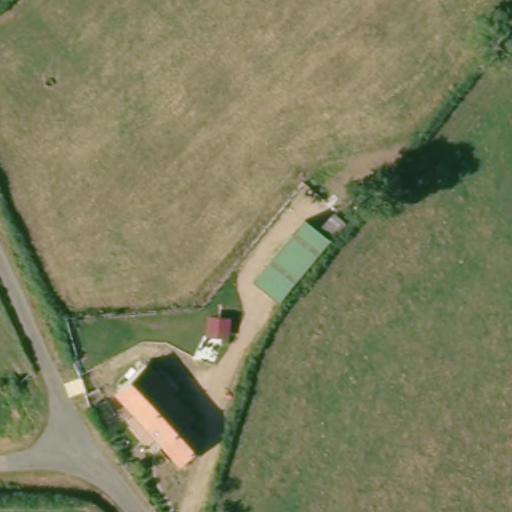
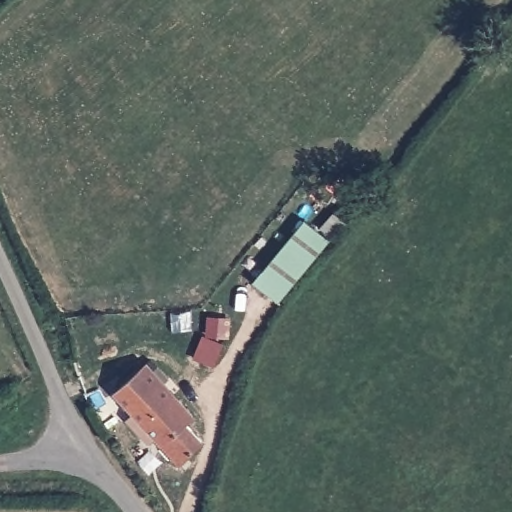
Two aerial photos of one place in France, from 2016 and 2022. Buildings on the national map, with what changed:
unchanged [(304,218),(318,230),(332,210),(348,224),(333,242),(329,238),(278,301),(253,279),(304,218)]
unchanged [(208,315),(231,318),(229,338),(205,336),(208,315)]
unchanged [(195,420),(190,427),(207,447),(183,470),(158,442),(153,446),(136,427),(140,423),(114,394),(143,367),(195,420)]

